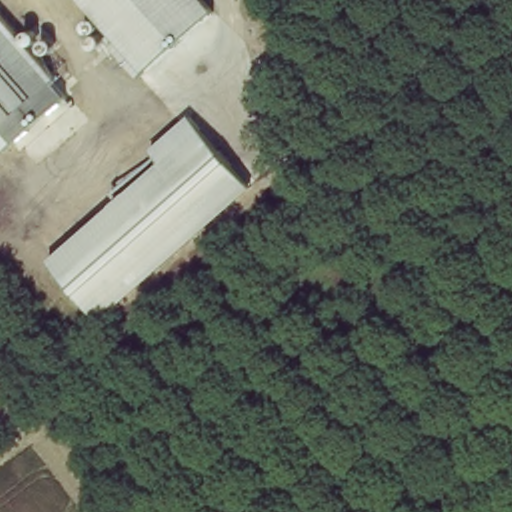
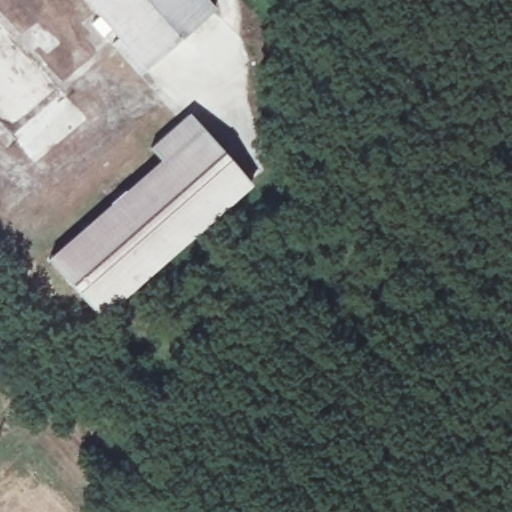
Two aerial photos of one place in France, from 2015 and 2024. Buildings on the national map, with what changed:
unchanged [(219,13),(149,75),(83,0),(208,0),(219,13)]
demolished [(66,99),(15,142),(0,126),(0,24),(66,99)]
unchanged [(246,183),(97,315),(46,258),(154,158),(143,148),(184,111),(246,183)]

